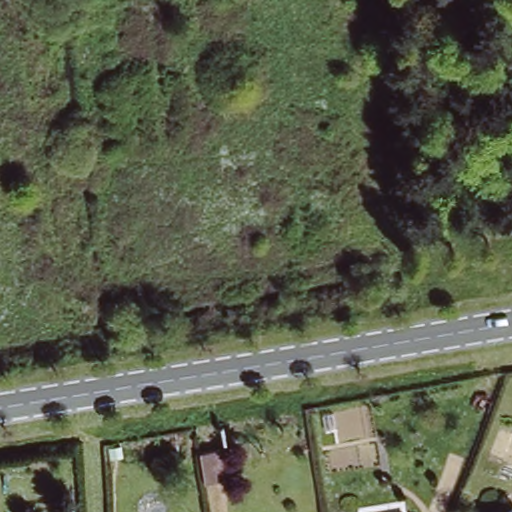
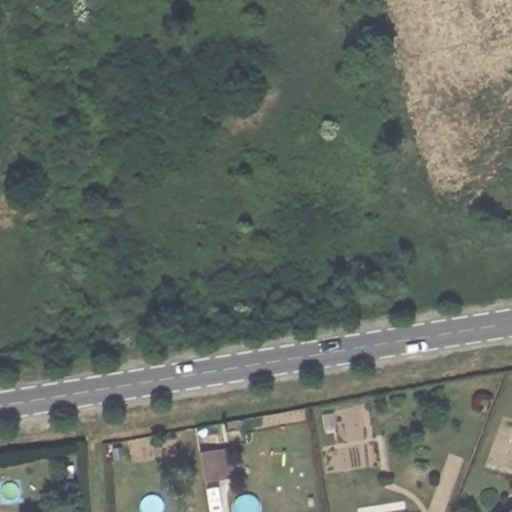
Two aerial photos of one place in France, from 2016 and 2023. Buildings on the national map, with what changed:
unchanged [(198,455),(217,452),(225,450),(230,477),(221,479),(202,482),(198,455)]
unchanged [(512,512),(506,512),(512,508),(512,512)]

